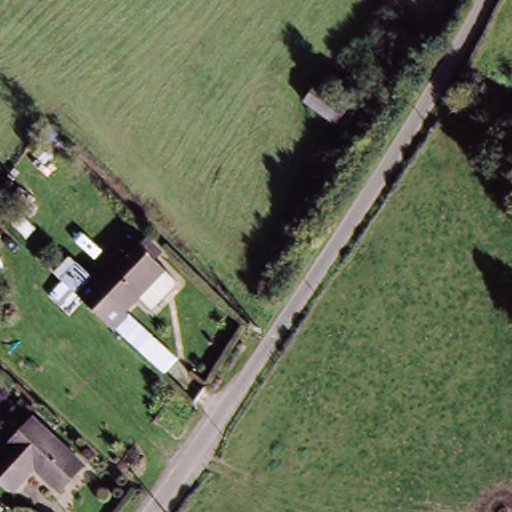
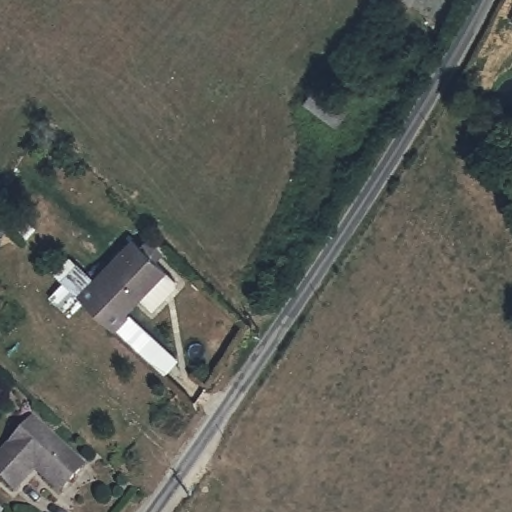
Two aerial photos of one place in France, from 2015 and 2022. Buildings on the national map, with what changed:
unchanged [(323,88),(353,111),(340,130),(309,106),(323,88)]
unchanged [(98,279),(133,240),(165,268),(180,281),(156,308),(141,296),(132,315),(176,365),(170,377),(68,286),(85,267),(98,279)]
unchanged [(84,467),(60,492),(35,469),(13,492),(0,480),(0,456),(35,421),(84,467)]

